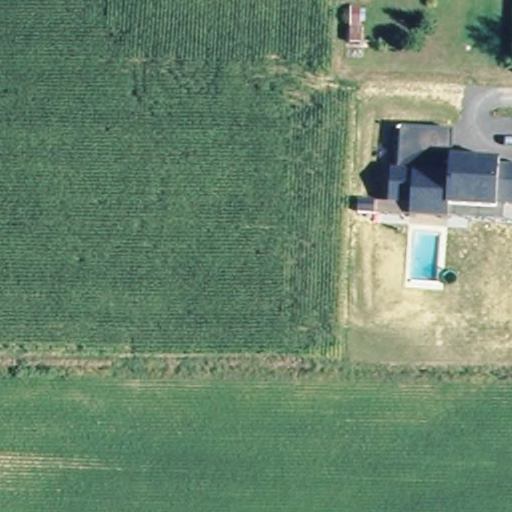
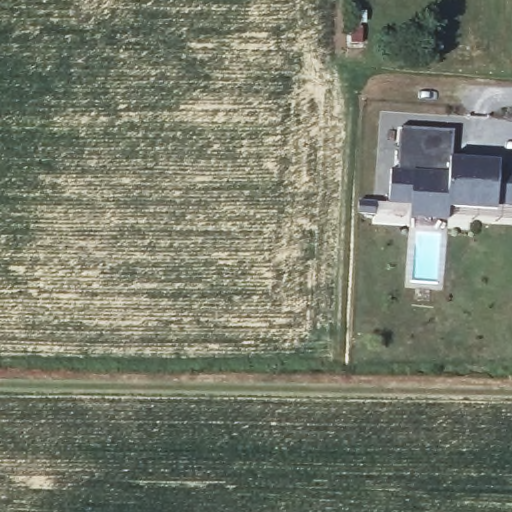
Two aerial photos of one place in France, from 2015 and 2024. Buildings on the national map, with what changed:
unchanged [(452,155),(501,158),(500,166),(512,166),(512,203),(497,204),(497,209),(451,206),(450,221),(408,219),(408,214),(357,212),(357,198),(389,199),(391,167),(397,166),(399,126),(454,129),(452,155)]

